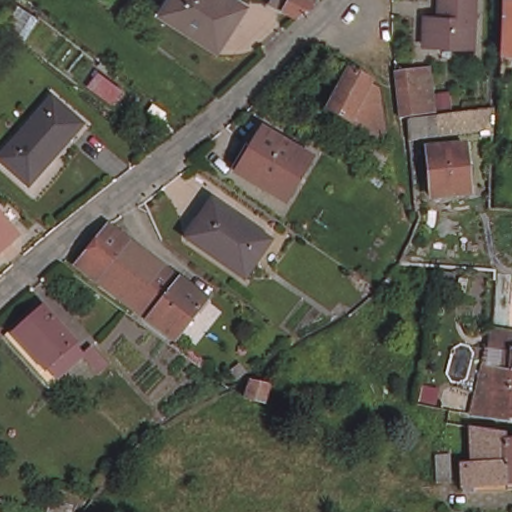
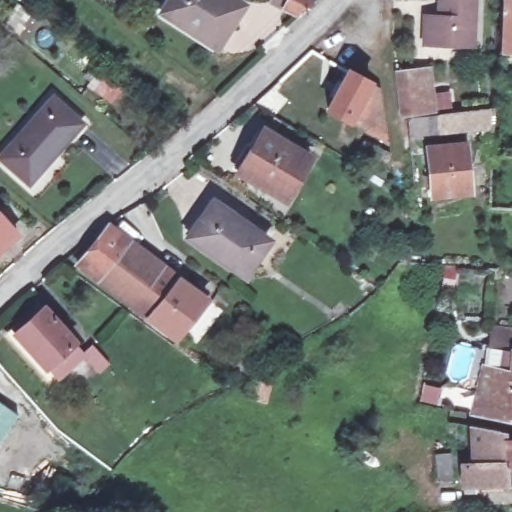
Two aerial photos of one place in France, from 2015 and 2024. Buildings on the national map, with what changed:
unchanged [(0,0),(3,0),(0,5),(0,0)]
unchanged [(216,45),(164,12),(172,0),(234,0),(242,5),(216,45)]
unchanged [(285,6),(289,0),(319,0),(320,0),(301,14),(285,6)]
unchanged [(422,47),(423,17),(440,17),(441,0),(475,0),(474,47),(422,47)]
unchanged [(503,49),(506,0),(512,0),(512,50),(503,49)]
unchanged [(309,92),(328,55),(350,66),(330,105),(309,92)]
unchanged [(360,71),(360,72),(370,130),(330,105),(350,66),(360,71)]
unchanged [(423,68),(427,90),(431,114),(408,118),(401,118),(395,72),(423,68)]
unchanged [(126,88),(115,102),(93,85),(102,71),(126,88)]
unchanged [(67,130),(70,133),(26,178),(0,155),(0,150),(50,96),(76,120),(67,130)]
unchanged [(431,114),(483,108),(495,106),(492,127),(410,138),(408,118),(431,114)]
unchanged [(351,142),(338,135),(343,124),(366,137),(360,158),(347,151),(351,142)]
unchanged [(290,143),(290,145),(312,159),(290,198),(263,181),(261,184),(240,170),(252,150),(254,151),(267,129),(290,143)]
unchanged [(466,142),(468,168),(470,190),(432,193),(428,145),(466,142)]
unchanged [(270,240),(246,274),(204,245),(192,237),(202,221),(216,202),(270,240)]
unchanged [(0,253),(0,214),(20,235),(0,253)]
unchanged [(208,298),(177,337),(79,264),(110,225),(208,298)]
unchanged [(5,329),(40,296),(71,329),(68,332),(80,343),(67,355),(47,374),(5,329)]
unchanged [(512,334),(512,374),(488,374),(495,332),(512,334)]
unchanged [(488,374),(512,374),(512,425),(481,419),(488,374)]
new [(0,442),(0,402),(19,415),(0,442)]
unchanged [(471,488),(470,468),(482,468),(482,464),(481,442),(481,438),(481,429),(509,437),(510,449),(512,449),(512,493),(483,493),(472,494),(471,488)]
unchanged [(452,450),(454,476),(437,476),(437,450),(452,450)]

